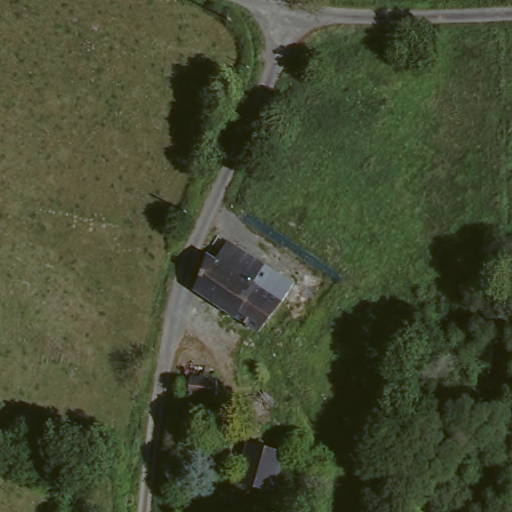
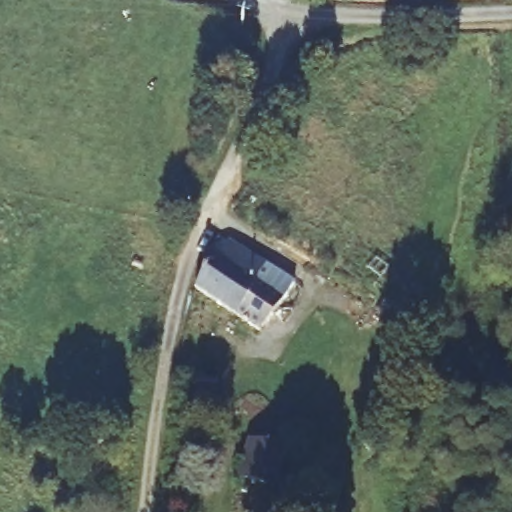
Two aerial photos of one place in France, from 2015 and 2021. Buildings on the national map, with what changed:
unchanged [(207,260),(221,242),(256,267),(246,282),(225,314),(187,290),(190,281),(197,257),(200,254),(207,260)]
unchanged [(274,299),(251,333),(225,314),(246,282),(274,299)]
unchanged [(192,375),(218,379),(214,398),(190,394),(192,375)]
unchanged [(247,454),(250,444),(285,454),(276,491),(241,482),(247,454)]

